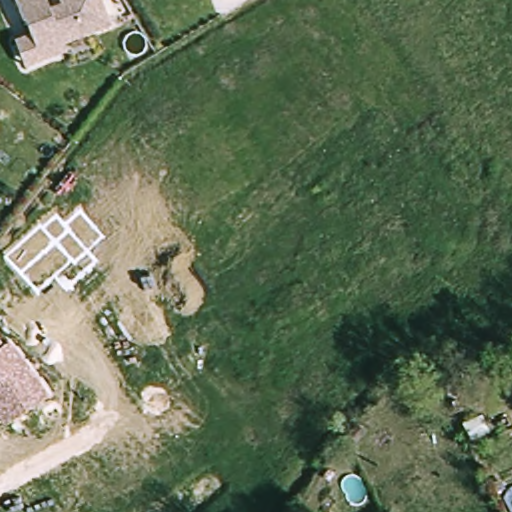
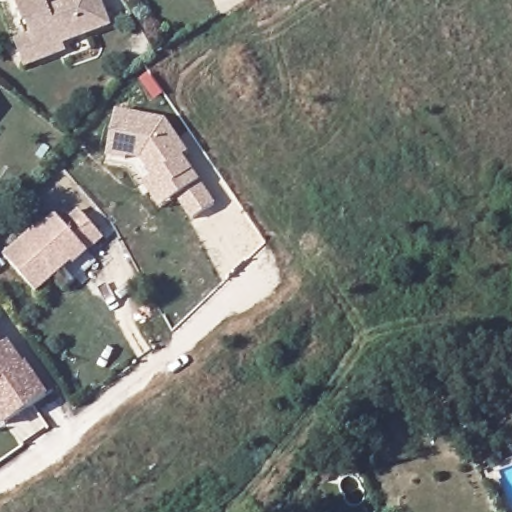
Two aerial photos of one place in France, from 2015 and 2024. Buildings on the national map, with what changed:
unchanged [(105,0),(113,20),(41,47),(29,15),(25,15),(20,0),(52,0),(53,4),(61,0),(105,0)]
new [(41,47),(61,40),(66,52),(26,69),(13,40),(35,31),(41,47)]
new [(165,120),(187,154),(182,157),(214,202),(193,218),(177,195),(161,207),(144,181),(140,184),(127,165),(106,161),(116,112),(165,120)]
new [(37,224),(40,227),(56,215),(67,200),(45,176),(57,162),(86,197),(76,207),(104,239),(75,265),(71,262),(38,293),(3,255),(37,224)]
unchanged [(5,345),(10,341),(50,394),(6,424),(0,416),(0,339),(5,345)]

